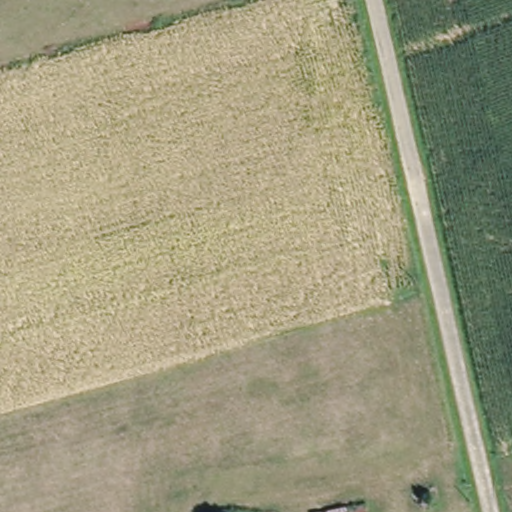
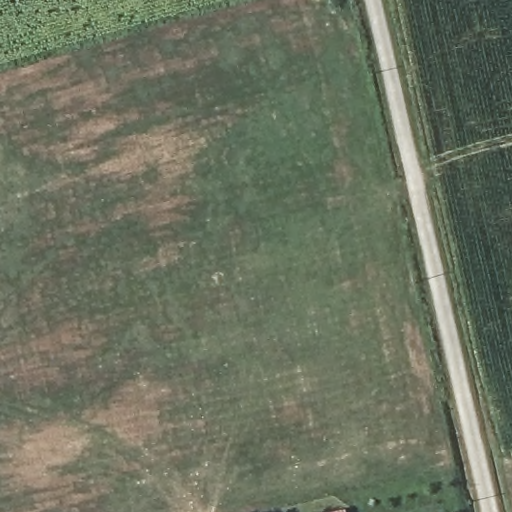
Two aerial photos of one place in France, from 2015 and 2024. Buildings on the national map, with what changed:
unchanged [(346,507),(347,512),(309,512),(346,507)]

